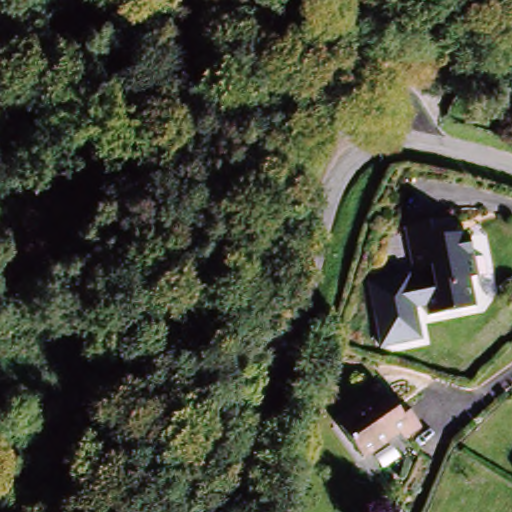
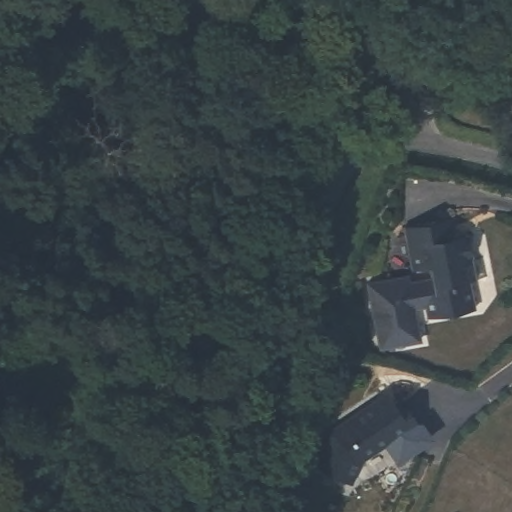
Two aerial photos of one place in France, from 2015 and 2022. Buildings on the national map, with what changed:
unchanged [(373,289),(413,281),(414,288),(436,283),(434,273),(418,276),(409,233),(440,227),(459,223),(463,240),(472,238),(477,263),(488,261),(492,280),(474,284),(480,313),(433,322),(431,311),(419,313),(426,347),(386,354),(373,289)]
unchanged [(335,425),(381,393),(390,406),(397,402),(414,427),(398,438),(394,433),(357,458),(335,425)]

